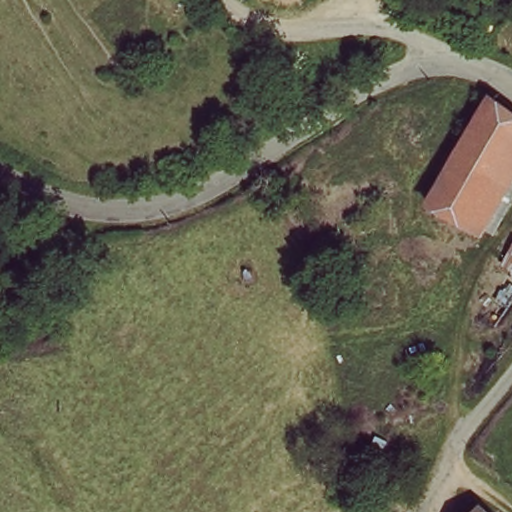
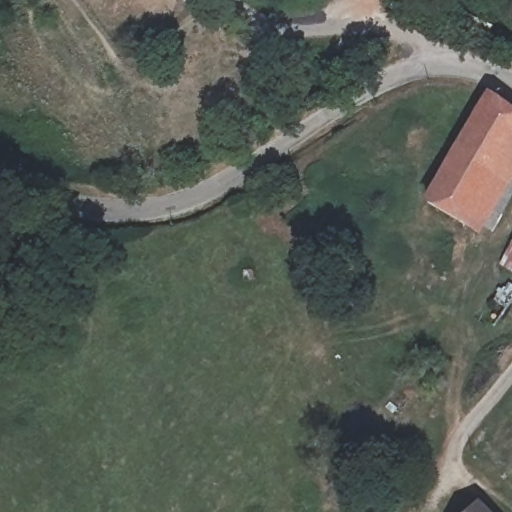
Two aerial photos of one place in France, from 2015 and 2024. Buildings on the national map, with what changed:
unchanged [(420,208),(500,91),(512,100),(512,189),(472,243),(420,208)]
unchanged [(505,274),(512,280),(512,294),(502,305),(488,295),(505,274)]

